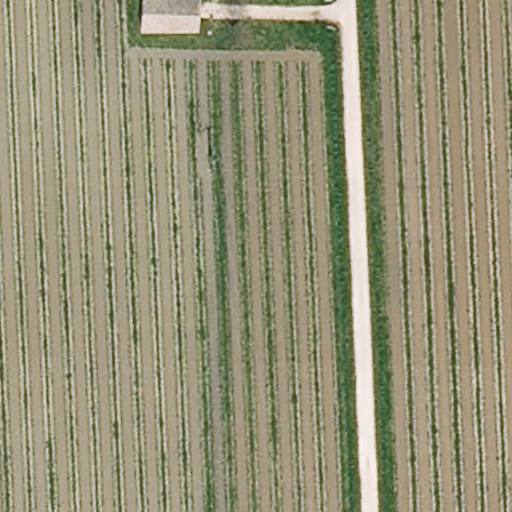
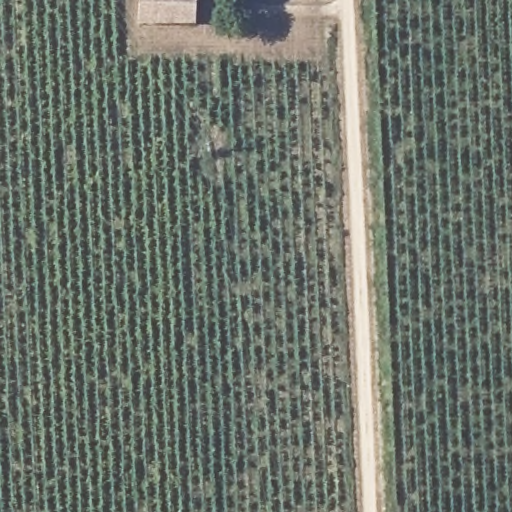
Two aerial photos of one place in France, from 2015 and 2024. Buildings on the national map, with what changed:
unchanged [(144,23),(145,0),(202,0),(200,26),(144,23)]

